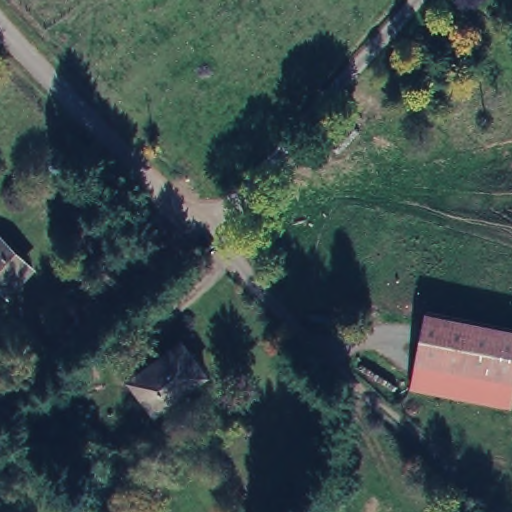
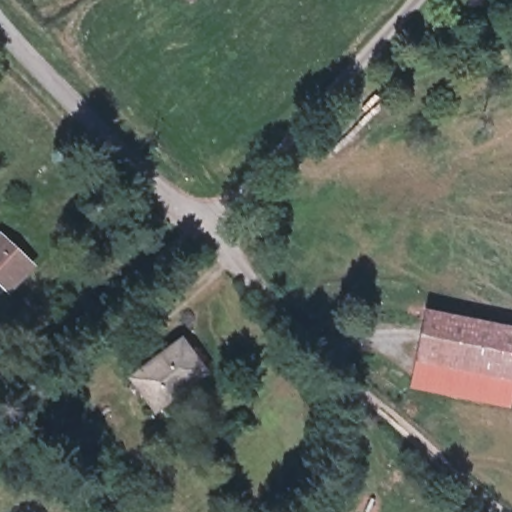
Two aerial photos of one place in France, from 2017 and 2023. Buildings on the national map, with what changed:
unchanged [(5,281),(0,276),(0,233),(25,261),(5,281)]
unchanged [(507,407),(411,385),(430,306),(512,326),(512,386),(507,407)]
unchanged [(174,337),(199,368),(152,409),(124,378),(174,337)]

